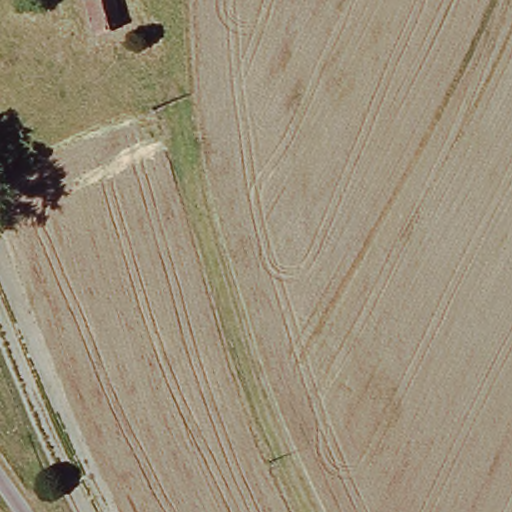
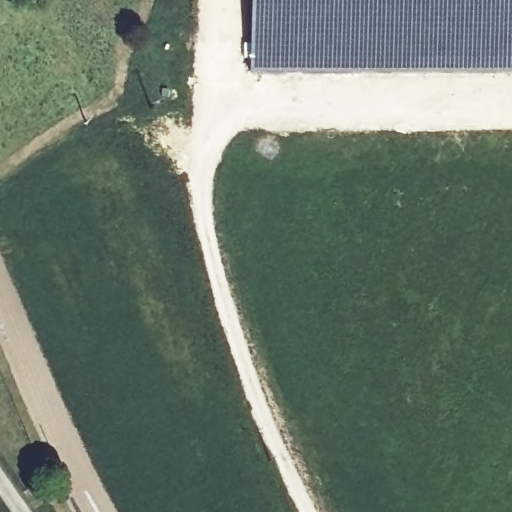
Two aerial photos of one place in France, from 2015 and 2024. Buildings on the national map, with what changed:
demolished [(124,25),(98,34),(87,0),(116,0),(124,25)]
new [(246,0),(512,0),(512,74),(246,73),(246,0)]

